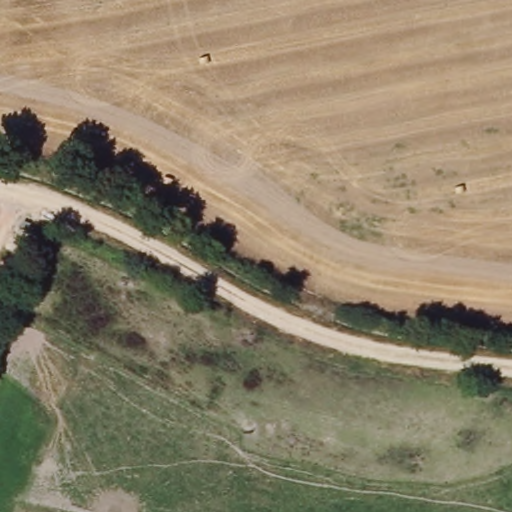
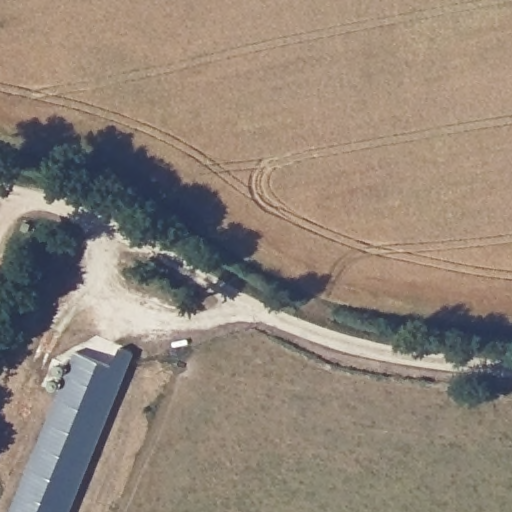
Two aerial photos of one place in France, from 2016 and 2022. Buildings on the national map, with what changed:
new [(112,365),(119,347),(134,352),(126,371),(119,368),(61,512),(10,512),(76,350),(112,365)]

